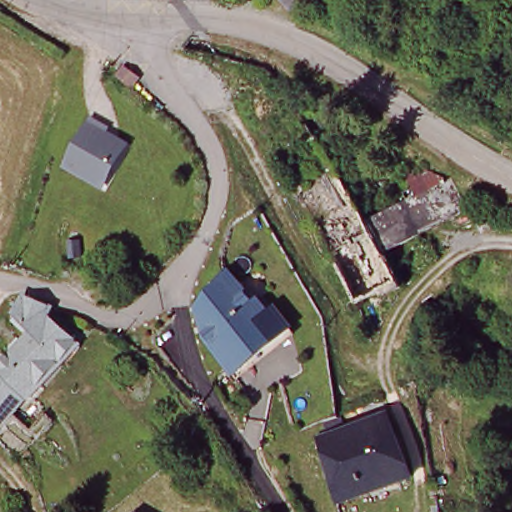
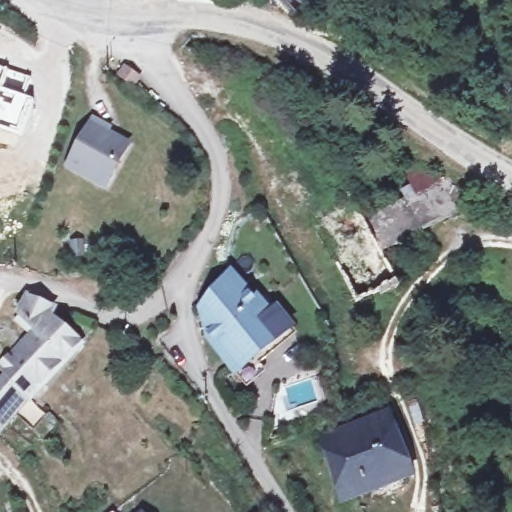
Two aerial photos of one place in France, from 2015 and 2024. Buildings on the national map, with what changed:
unchanged [(293,11),(282,0),(305,0),(293,11)]
new [(28,96),(33,98),(21,134),(0,126),(0,65),(32,77),(28,96)]
unchanged [(125,70),(138,80),(133,86),(120,77),(125,70)]
unchanged [(95,124),(108,131),(106,136),(128,147),(107,187),(72,168),(95,124)]
unchanged [(253,363),(257,371),(245,381),(235,368),(210,335),(200,302),(230,268),(253,296),(257,293),(286,326),(291,331),(253,363)]
unchanged [(63,312),(60,320),(92,342),(75,361),(42,332),(37,328),(25,316),(34,299),(63,312)]
unchanged [(55,384),(52,382),(38,397),(8,369),(42,332),(75,361),(55,384)]
unchanged [(342,410),(349,429),(391,412),(417,474),(343,504),(318,441),(326,438),(319,420),(342,410)]
unchanged [(434,512),(433,506),(441,504),(443,512),(434,512)]

